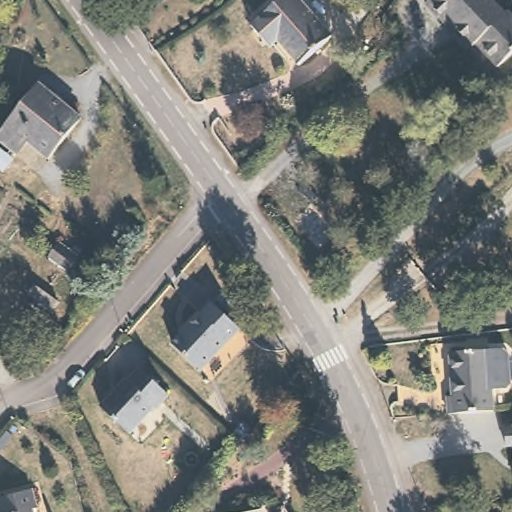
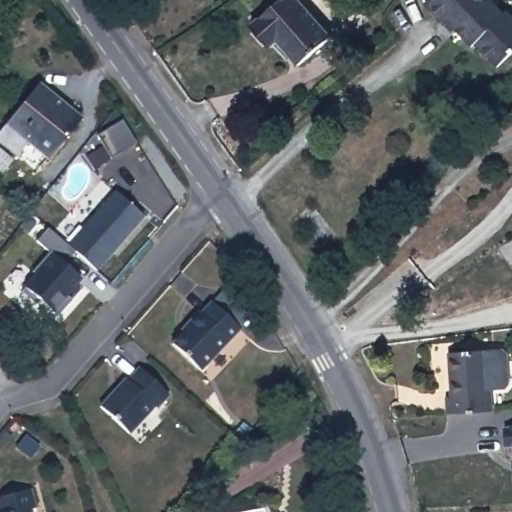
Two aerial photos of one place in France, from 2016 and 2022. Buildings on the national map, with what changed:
unchanged [(296,61),(275,37),(267,45),(249,24),(276,0),(300,0),(329,34),(296,61)]
unchanged [(428,0),(471,0),(444,22),(427,1),(428,0)]
unchanged [(481,51),(474,43),(471,46),(449,21),(446,25),(444,22),(471,0),(491,0),(504,15),(507,12),(512,19),(512,53),(494,67),(481,51)]
unchanged [(18,150),(0,135),(0,130),(45,80),(75,106),(85,115),(49,155),(46,152),(29,137),(18,150)]
unchanged [(1,165),(0,164),(0,145),(11,155),(1,165)]
new [(98,271),(74,250),(67,244),(114,190),(144,216),(98,271)]
new [(65,264),(82,280),(68,296),(72,301),(57,318),(23,286),(53,253),(38,240),(49,228),(67,244),(74,250),(65,264)]
unchanged [(236,331),(198,372),(169,346),(209,305),(236,331)]
unchanged [(507,353),(509,381),(504,387),(491,388),(492,408),(446,412),(446,393),(451,393),(448,350),(501,347),(507,353)]
unchanged [(165,397),(152,411),(150,409),(124,435),(95,408),(122,381),(124,383),(136,370),(165,397)]
unchanged [(252,426),(244,436),(236,430),(244,420),(252,426)]
unchanged [(507,444),(507,426),(512,426),(512,444),(507,444)]
unchanged [(29,511),(27,512),(0,512),(0,498),(24,492),(29,511)]
unchanged [(264,510),(265,512),(253,512),(264,510)]

